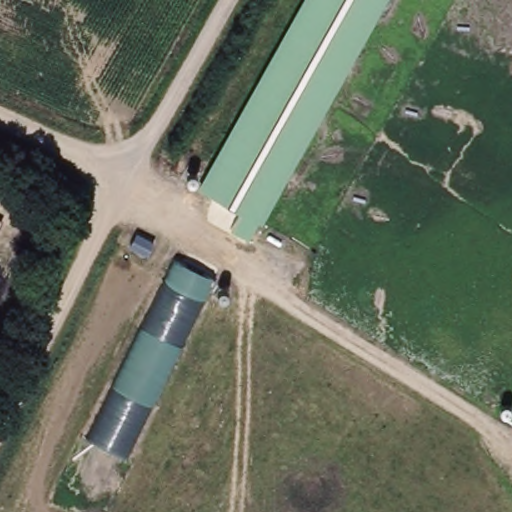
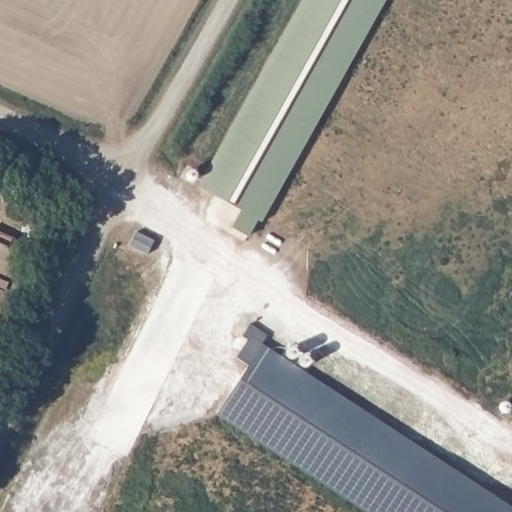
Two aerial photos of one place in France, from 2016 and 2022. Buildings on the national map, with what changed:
unchanged [(232,227),(242,211),(201,189),(304,0),(386,0),(252,236),(232,227)]
demolished [(217,275),(129,450),(93,432),(181,254),(217,275)]
new [(512,508),(512,512),(371,512),(217,414),(262,345),(512,508)]

